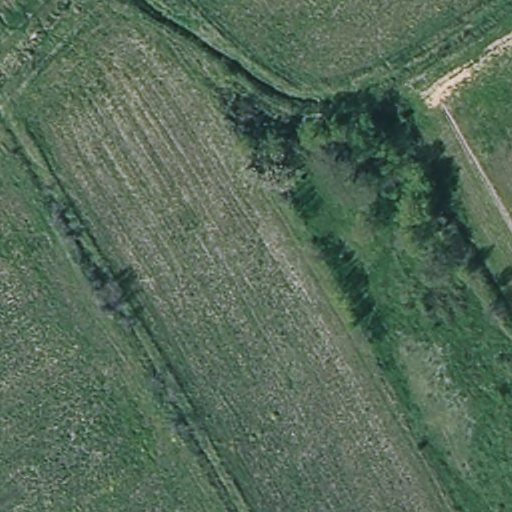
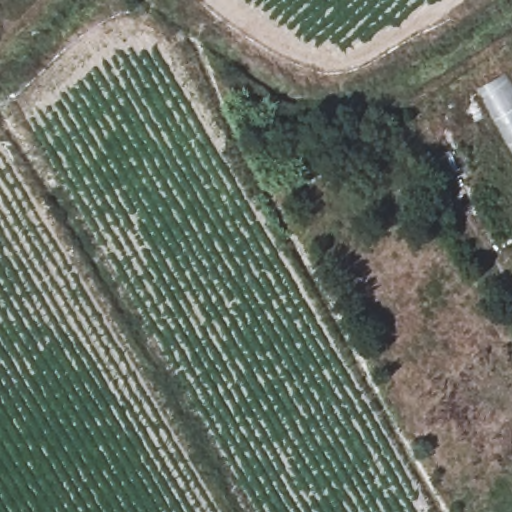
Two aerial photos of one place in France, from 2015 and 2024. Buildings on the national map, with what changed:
new [(512,92),(512,146),(478,88),(502,74),(512,92)]

